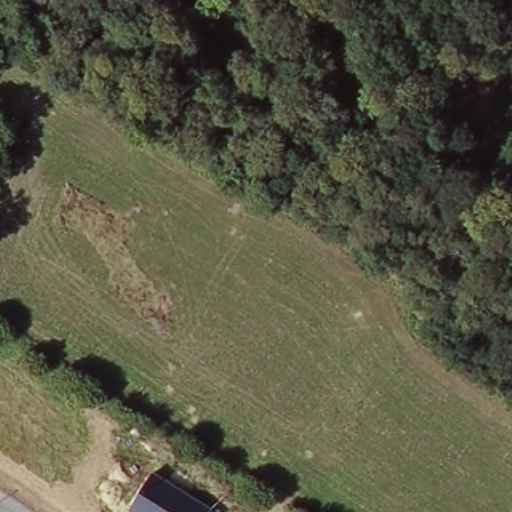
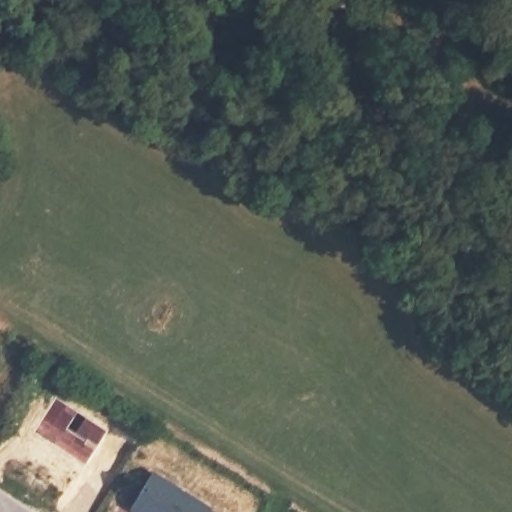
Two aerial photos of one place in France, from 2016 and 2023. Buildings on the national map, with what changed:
new [(34,433),(57,395),(110,429),(87,463),(34,433)]
unchanged [(208,512),(133,512),(129,510),(154,470),(212,507),(208,512)]

